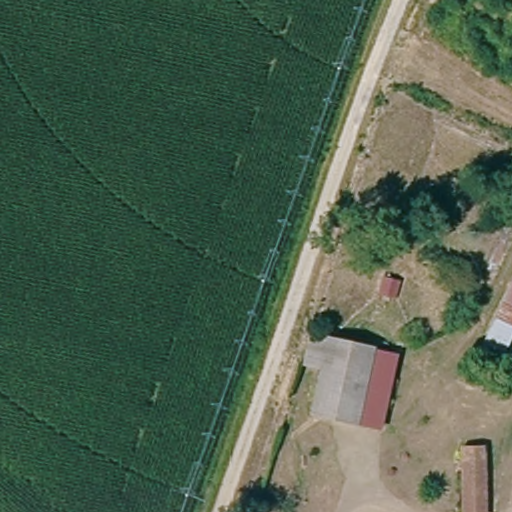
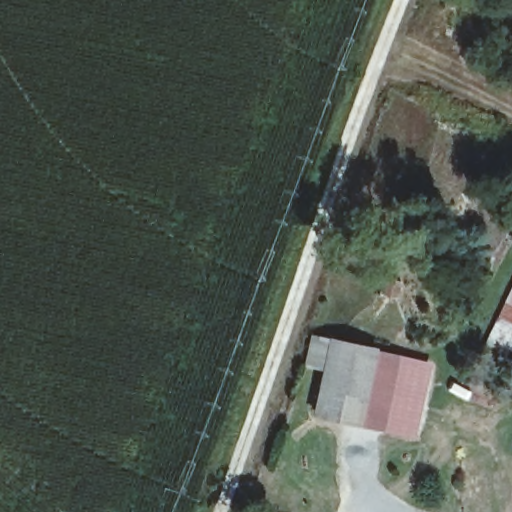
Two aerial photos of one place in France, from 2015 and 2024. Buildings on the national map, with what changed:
unchanged [(498,367),(470,355),(512,271),(512,337),(498,367)]
unchanged [(343,428),(304,421),(321,331),(360,339),(343,428)]
unchanged [(375,434),(343,428),(360,339),(391,345),(375,434)]
new [(389,353),(432,362),(415,437),(376,429),(389,353)]
unchanged [(478,449),(482,512),(462,511),(461,450),(478,449)]

